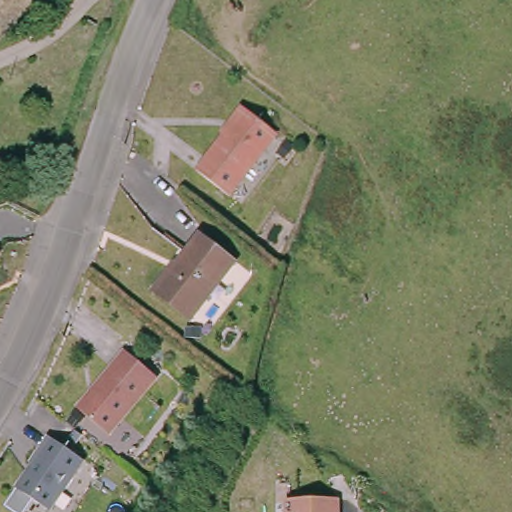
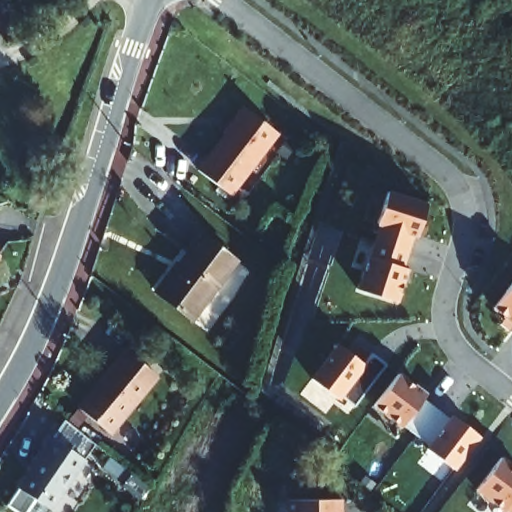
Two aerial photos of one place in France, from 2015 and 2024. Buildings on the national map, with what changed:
unchanged [(205,153),(240,107),(272,132),(226,192),(194,167),(205,153)]
new [(397,304),(356,293),(385,193),(426,205),(397,304)]
unchanged [(236,259),(188,314),(154,285),(186,248),(202,229),(236,259)]
new [(492,310),(512,285),(512,325),(492,310)]
new [(364,366),(371,356),(384,367),(352,407),(341,399),(337,402),(309,381),(336,344),(364,366)]
unchanged [(113,349),(145,374),(97,433),(66,408),(113,349)]
new [(480,438),(454,470),(372,407),(399,372),(480,438)]
unchanged [(69,460),(32,509),(1,485),(18,462),(17,461),(36,435),(69,460)]
new [(512,465),(512,512),(499,512),(474,493),(502,457),(512,465)]
unchanged [(296,502),(346,501),(346,512),(295,512),(296,502)]

